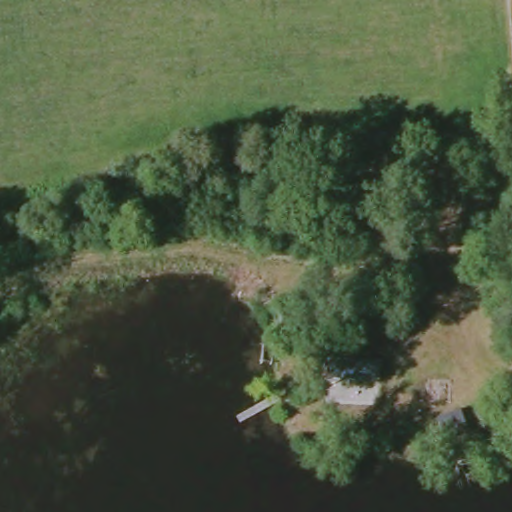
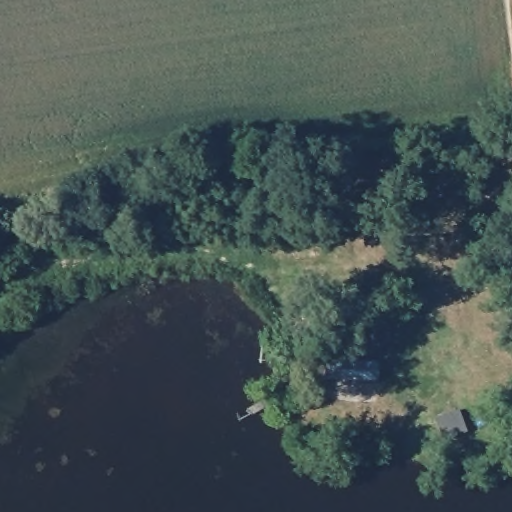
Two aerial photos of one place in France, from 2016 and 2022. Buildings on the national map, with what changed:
unchanged [(328,375),(330,356),(380,358),(380,377),(328,375)]

